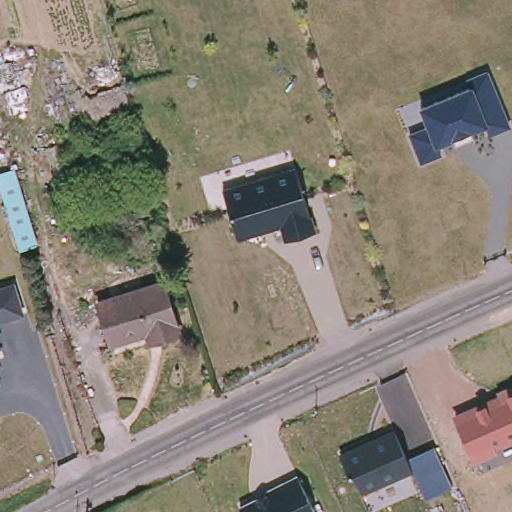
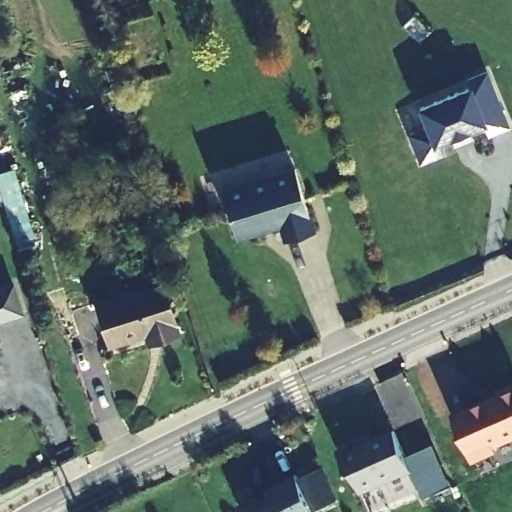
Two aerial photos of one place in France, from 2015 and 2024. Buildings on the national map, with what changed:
unchanged [(428,126),(418,106),(467,85),(466,76),(490,66),(511,125),(491,134),(485,123),(437,144),(442,153),(422,162),(408,132),(428,126)]
unchanged [(297,165),(317,229),(285,238),(281,225),(238,238),(221,188),(297,165)]
unchanged [(35,247),(16,251),(0,200),(0,173),(11,170),(35,247)]
unchanged [(20,309),(0,315),(0,284),(12,280),(20,309)]
unchanged [(165,284),(181,336),(162,342),(159,332),(114,346),(100,304),(165,284)]
unchanged [(0,361),(0,354),(2,360),(0,361)]
unchanged [(494,394),(492,388),(512,380),(512,440),(498,445),(500,452),(475,462),(453,412),(494,394)]
unchanged [(395,426),(406,455),(436,443),(452,484),(423,495),(410,466),(356,489),(340,449),(395,426)]
unchanged [(269,490),(266,485),(300,472),(319,512),(245,512),(241,505),(269,490)]

